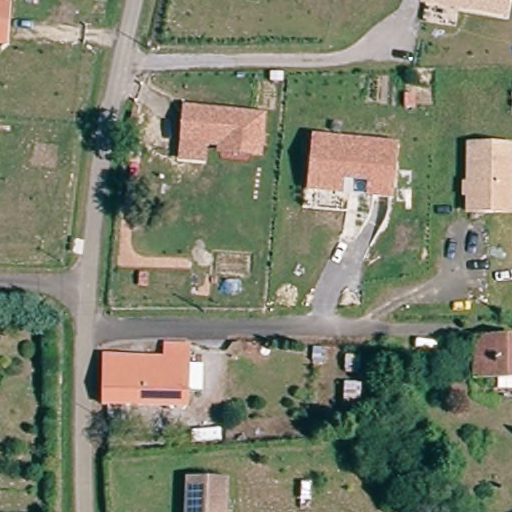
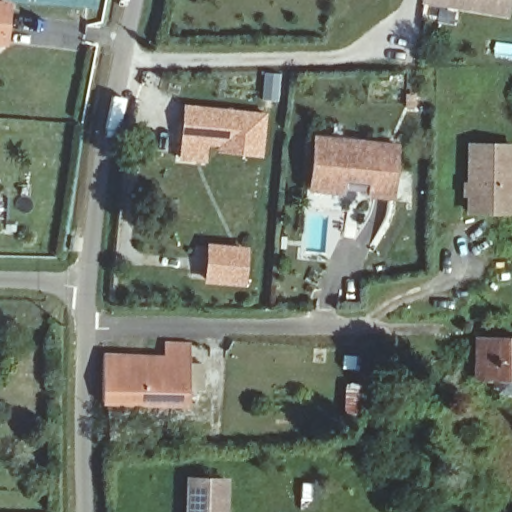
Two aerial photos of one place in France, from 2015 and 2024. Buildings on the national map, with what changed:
unchanged [(422,1),(422,0),(506,0),(504,12),(422,1)]
unchanged [(0,43),(0,4),(6,5),(4,44),(0,43)]
unchanged [(252,155),(218,151),(219,146),(204,144),(185,142),(180,141),(183,124),(184,107),(200,109),(263,116),(259,145),(258,156),(252,155)]
unchanged [(393,201),(369,197),(372,182),(344,179),(343,195),(311,191),(318,139),(399,149),(393,201)]
unchanged [(468,185),(472,185),(474,146),(512,147),(512,214),(471,212),(471,195),(468,195),(468,185)]
new [(206,242),(248,246),(244,287),(203,283),(206,242)]
unchanged [(512,338),(512,384),(478,383),(478,338),(512,338)]
unchanged [(204,390),(188,389),(187,407),(100,408),(104,357),(165,356),(166,345),(188,344),(188,363),(204,364),(204,390)]
unchanged [(187,482),(196,482),(226,481),(225,512),(186,512),(187,482)]

